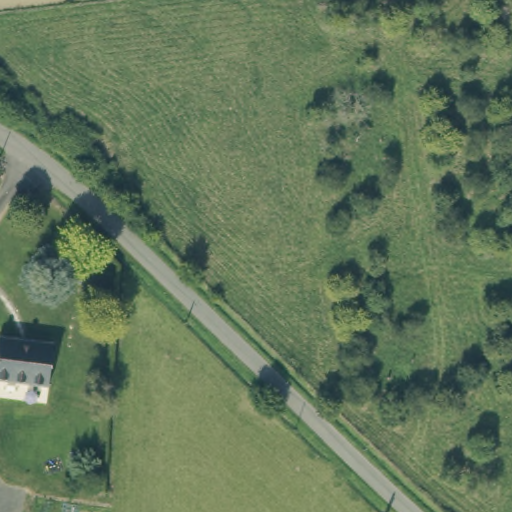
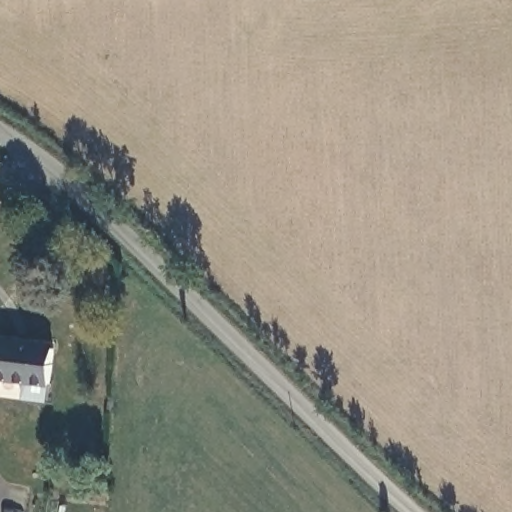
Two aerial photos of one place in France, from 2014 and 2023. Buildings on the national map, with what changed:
unchanged [(19,340),(57,346),(51,384),(0,377),(0,333),(19,336),(19,340)]

